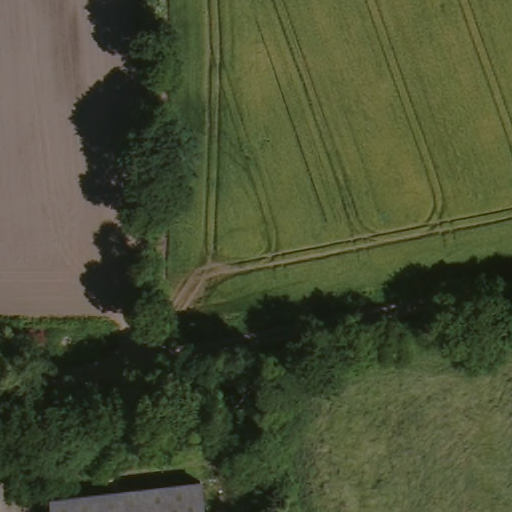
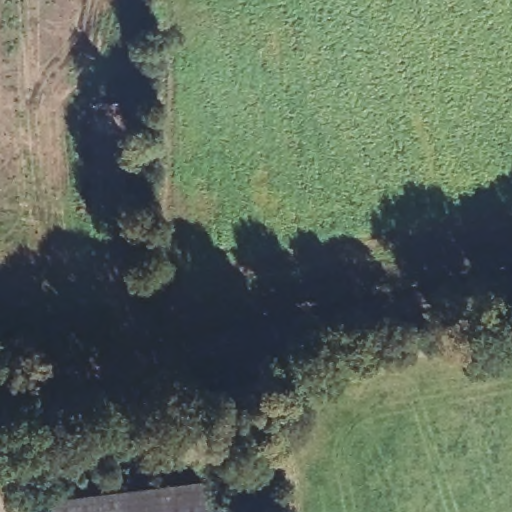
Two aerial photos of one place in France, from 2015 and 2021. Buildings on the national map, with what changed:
unchanged [(49,512),(48,502),(200,486),(203,512),(49,512)]

